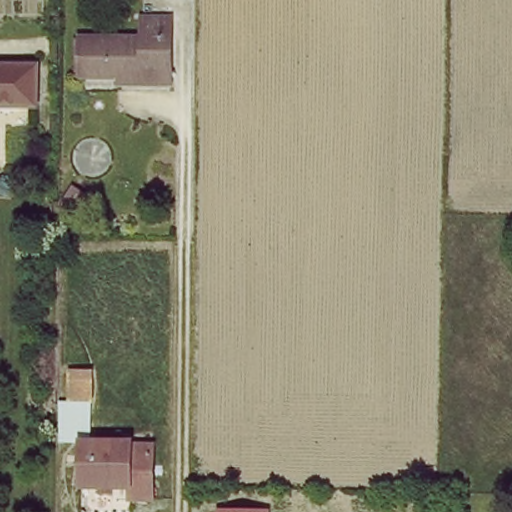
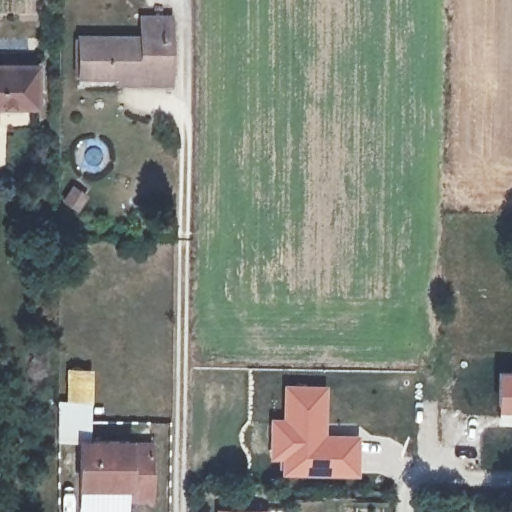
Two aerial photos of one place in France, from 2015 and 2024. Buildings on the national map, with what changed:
unchanged [(170,15),(169,68),(152,66),(151,74),(81,73),(80,33),(144,34),(145,13),(170,15)]
unchanged [(34,104),(0,103),(0,64),(35,65),(34,104)]
unchanged [(92,405),(57,405),(60,368),(91,369),(92,405)]
new [(495,369),(512,369),(512,410),(495,410),(495,369)]
new [(269,415),(282,415),(283,382),(326,383),(326,431),(361,433),(359,476),(279,475),(279,460),(268,459),(269,415)]
unchanged [(130,440),(130,450),(151,450),(150,496),(128,496),(129,485),(80,484),(80,440),(130,440)]
unchanged [(270,510),(270,512),(217,512),(217,509),(270,510)]

